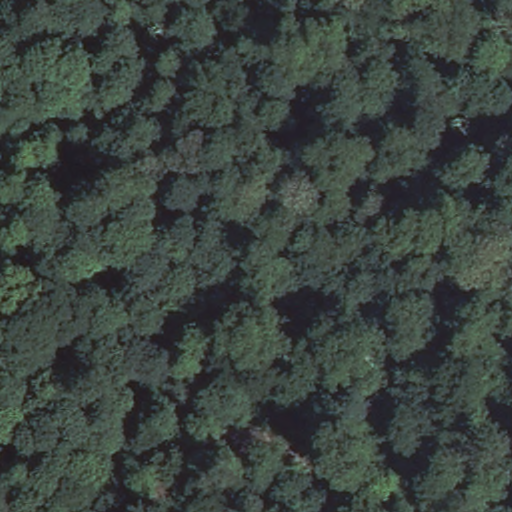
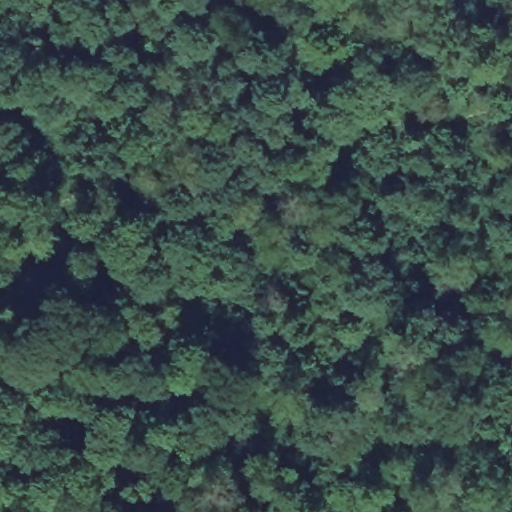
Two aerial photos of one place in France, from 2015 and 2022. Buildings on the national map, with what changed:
unchanged [(68,0),(82,36),(0,73),(0,7),(15,0),(68,0)]

